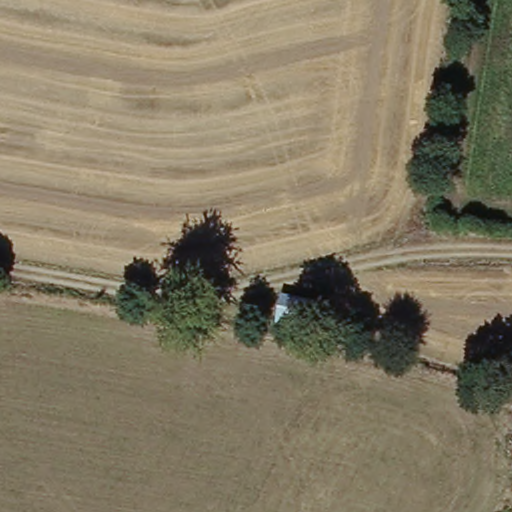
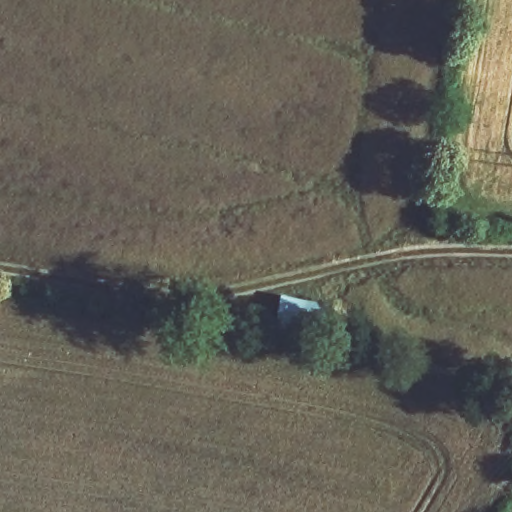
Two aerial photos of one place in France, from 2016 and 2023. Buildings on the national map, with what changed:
unchanged [(286,297),(331,306),(325,336),(281,326),(286,297)]

